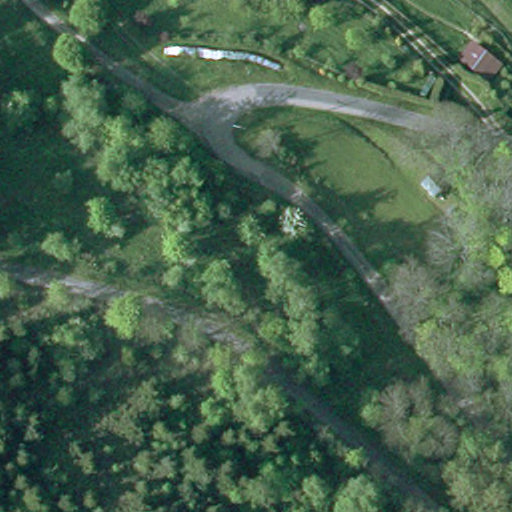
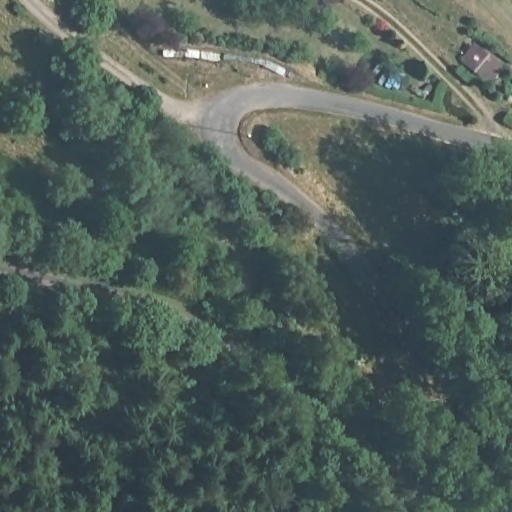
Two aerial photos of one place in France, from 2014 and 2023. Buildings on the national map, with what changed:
unchanged [(494,59),(483,75),(459,59),(469,43),(494,59)]

